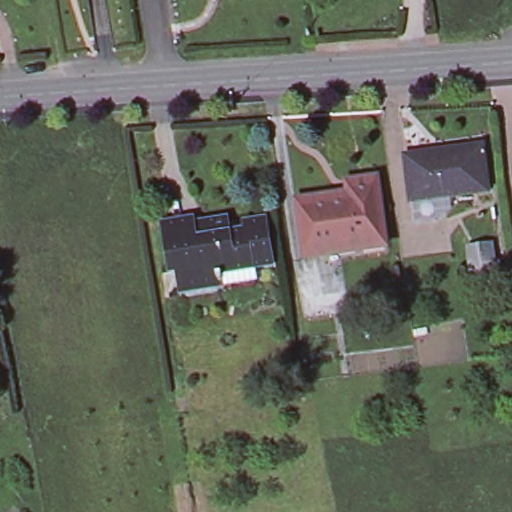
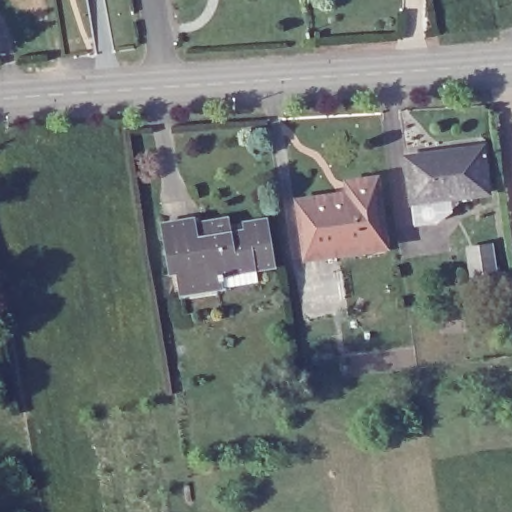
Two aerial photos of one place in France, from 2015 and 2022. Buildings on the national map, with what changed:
unchanged [(412,194),(407,155),(482,145),(487,184),(459,188),(457,196),(437,214),(415,217),(412,194)]
unchanged [(348,194),(346,182),(375,178),(385,245),(304,256),(297,201),(348,194)]
unchanged [(220,286),(180,292),(177,270),(170,270),(162,223),(192,218),(194,230),(205,228),(204,220),(228,216),(230,231),(244,229),(242,221),(264,218),(271,265),(273,277),(220,286)]

